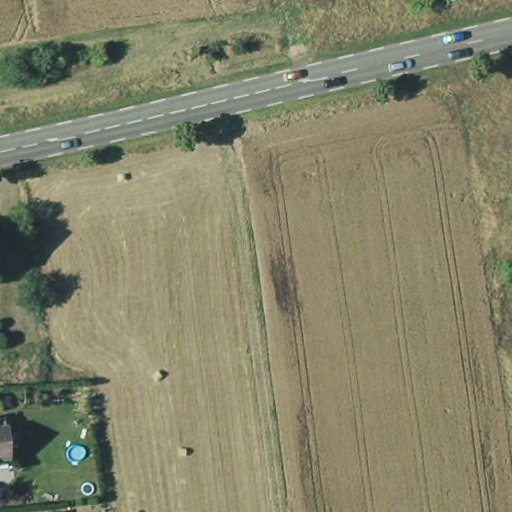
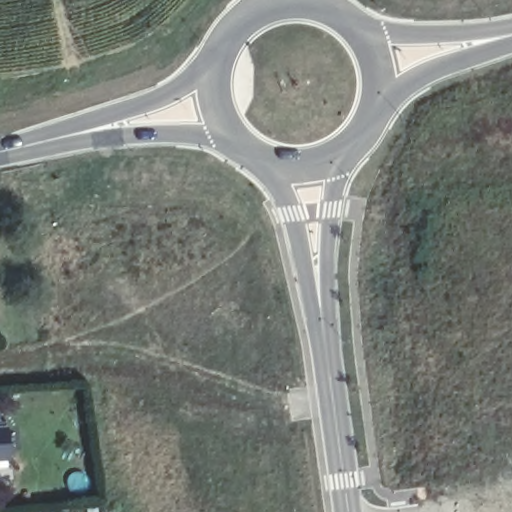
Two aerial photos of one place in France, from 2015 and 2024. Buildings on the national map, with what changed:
unchanged [(4,424),(7,456),(0,456),(0,424),(4,424)]

